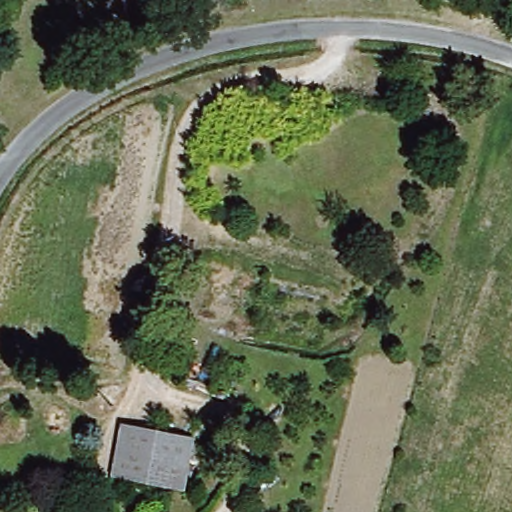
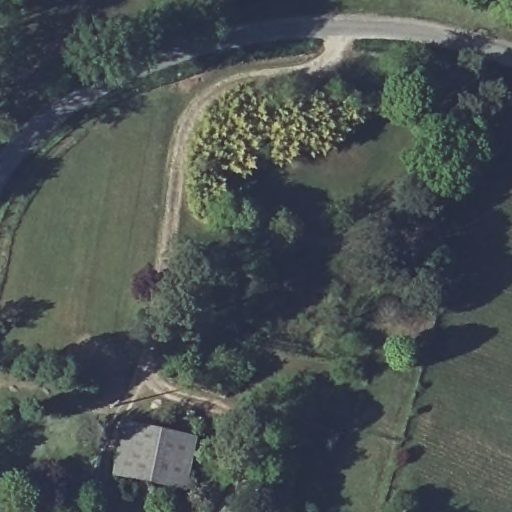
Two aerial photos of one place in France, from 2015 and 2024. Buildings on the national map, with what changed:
unchanged [(127,424),(189,438),(179,482),(117,468),(127,424)]

